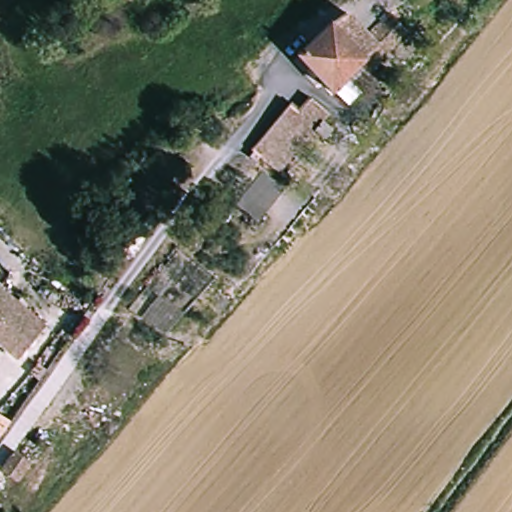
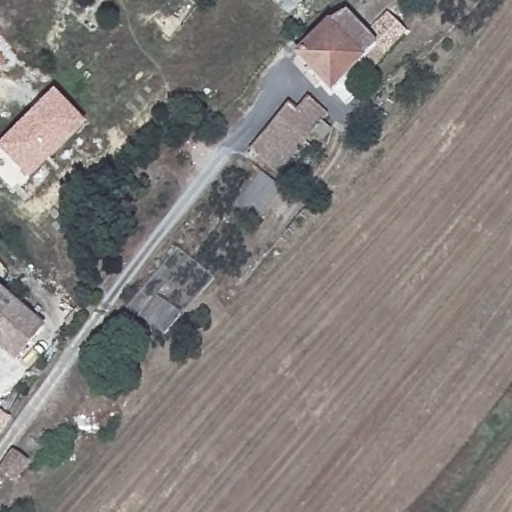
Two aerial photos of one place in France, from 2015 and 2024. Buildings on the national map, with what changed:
unchanged [(294,52),(327,22),(345,12),(361,30),(383,9),(403,31),(362,69),(356,62),(327,88),(294,52)]
unchanged [(256,137),(297,90),(304,96),(312,86),(333,103),(312,129),(316,132),(308,142),(302,138),(282,162),(256,137)]
new [(0,150),(0,146),(55,91),(88,124),(31,181),(0,150)]
unchanged [(288,176),(261,210),(235,190),(264,156),(288,176)]
unchanged [(15,357),(0,344),(0,291),(41,327),(15,357)]
unchanged [(164,330),(137,310),(153,292),(182,314),(164,330)]
unchanged [(0,467),(12,451),(30,465),(16,483),(0,471),(0,467)]

